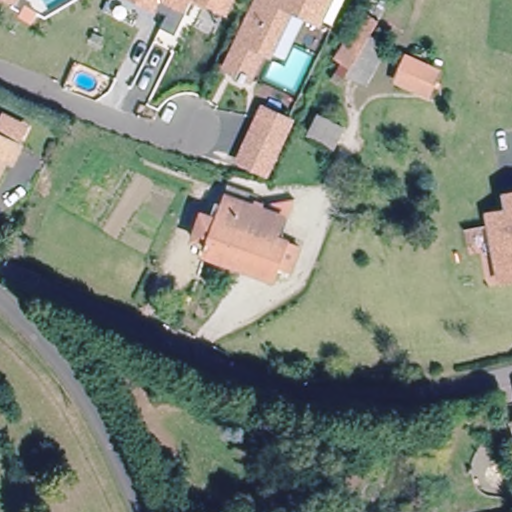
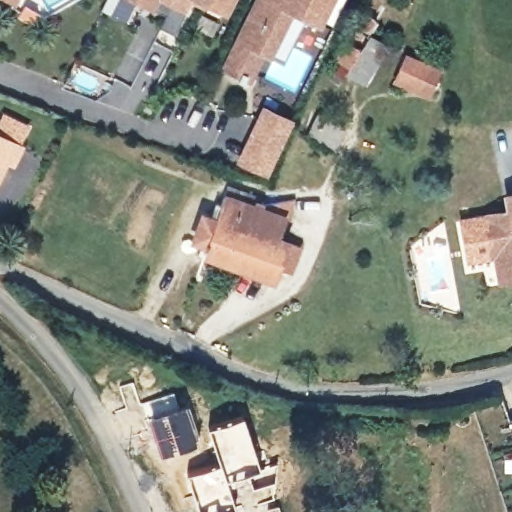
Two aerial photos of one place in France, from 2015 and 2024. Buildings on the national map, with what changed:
unchanged [(127,0),(158,0),(154,9),(151,13),(140,7),(127,0)]
unchanged [(160,0),(192,0),(184,12),(160,0)]
unchanged [(205,1),(203,6),(192,0),(231,0),(225,11),(205,1)]
unchanged [(242,77),(234,72),(224,68),(237,42),(256,0),(330,0),(319,22),(293,9),(272,55),(264,52),(259,64),(249,86),(239,81),(242,77)]
unchanged [(391,34),(365,92),(325,72),(354,17),(391,34)]
unchanged [(423,97),(416,94),(392,79),(404,57),(427,71),(435,76),(423,97)]
unchanged [(260,109),(287,121),(264,173),(238,162),(260,109)]
unchanged [(328,152),(304,140),(312,124),(337,136),(328,152)]
unchanged [(28,136),(12,169),(0,164),(0,141),(4,142),(11,128),(28,136)]
new [(493,260),(467,264),(459,217),(506,210),(502,192),(512,190),(512,282),(498,285),(493,260)]
unchanged [(207,223),(215,227),(219,215),(225,200),(229,191),(261,204),(267,209),(264,216),(243,272),(204,257),(207,249),(198,245),(207,223)]
unchanged [(290,277),(279,273),(274,284),(243,272),(264,216),(287,224),(279,245),(288,249),(298,254),(290,277)]
demolished [(503,277),(496,235),(494,225),(512,222),(512,276),(503,277)]
new [(187,405),(199,443),(161,455),(148,417),(187,405)]
new [(238,507),(225,512),(219,512),(218,507),(205,512),(199,512),(187,474),(219,462),(208,427),(244,415),(262,468),(279,462),(277,481),(275,500),(238,507)]
new [(279,503),(281,512),(237,512),(279,503)]
new [(235,508),(237,512),(224,512),(235,508)]

